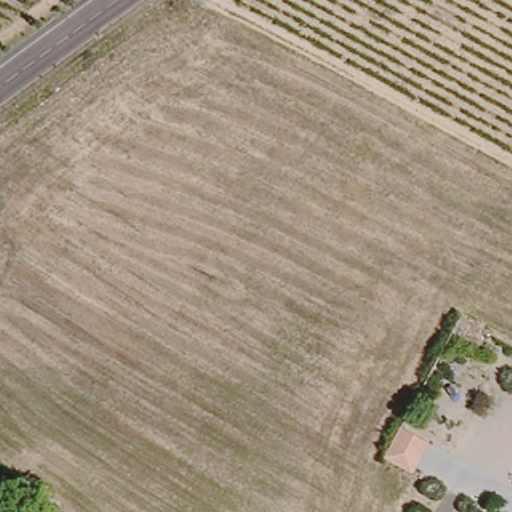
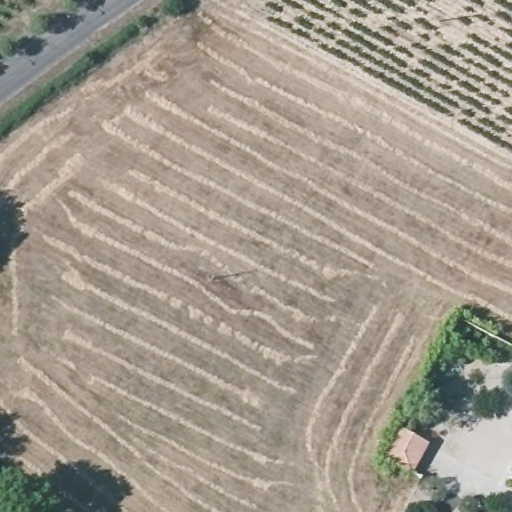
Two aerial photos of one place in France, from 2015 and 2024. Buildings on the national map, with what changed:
unchanged [(385,463),(398,429),(436,442),(419,475),(385,463)]

